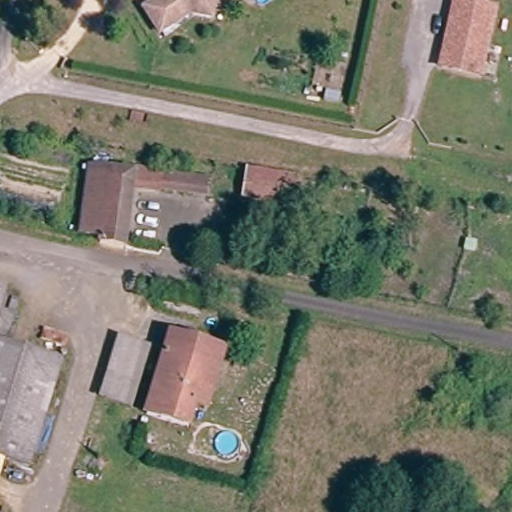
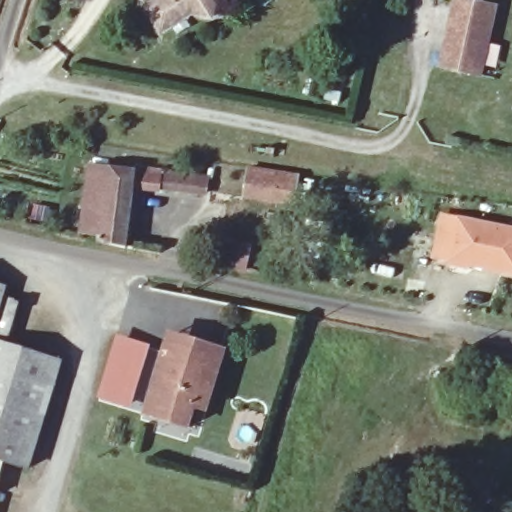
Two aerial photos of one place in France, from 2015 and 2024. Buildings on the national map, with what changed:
unchanged [(217,2),(215,15),(195,11),(165,30),(150,6),(160,0),(221,0),(217,2)]
unchanged [(466,3),(505,11),(491,80),(452,72),(466,3)]
unchanged [(136,182),(128,238),(85,231),(95,166),(137,172),(136,182)]
unchanged [(245,169),(297,175),(295,201),(242,195),(245,169)]
unchanged [(209,176),(206,193),(162,186),(165,170),(209,176)]
new [(458,216),(512,227),(512,276),(470,267),(469,271),(449,266),(449,261),(432,259),(440,214),(458,216)]
unchanged [(0,301),(0,282),(5,283),(0,301)]
unchanged [(212,345),(195,405),(153,394),(170,332),(212,345)]
unchanged [(31,467),(4,460),(0,472),(0,337),(62,357),(31,467)]
unchanged [(119,339),(141,345),(125,401),(103,395),(119,339)]

